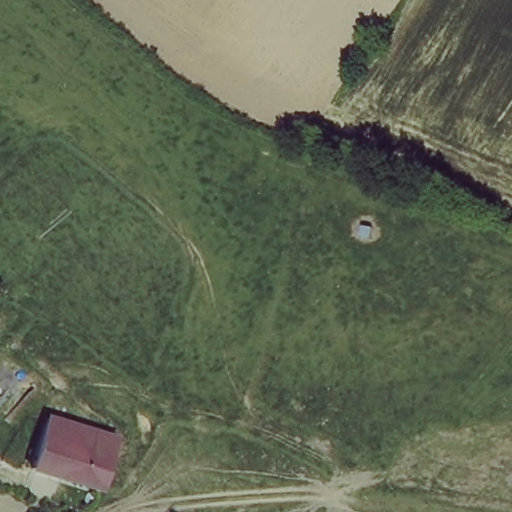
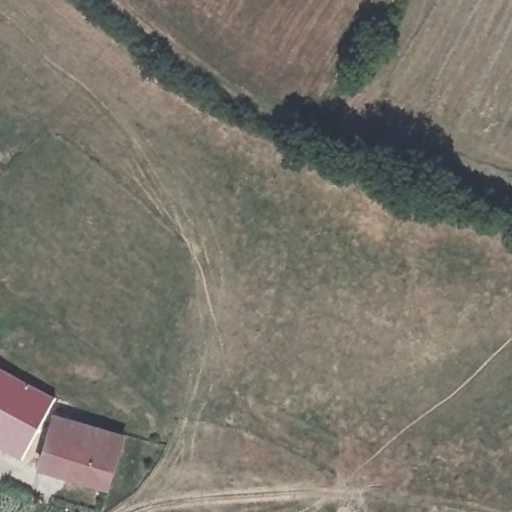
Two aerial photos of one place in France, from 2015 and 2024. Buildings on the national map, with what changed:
new [(11,449),(0,441),(0,357),(50,391),(11,449)]
unchanged [(118,440),(104,495),(45,475),(52,416),(116,435),(118,440)]

